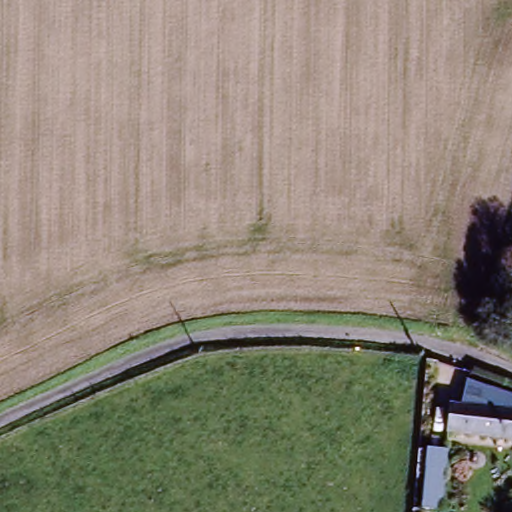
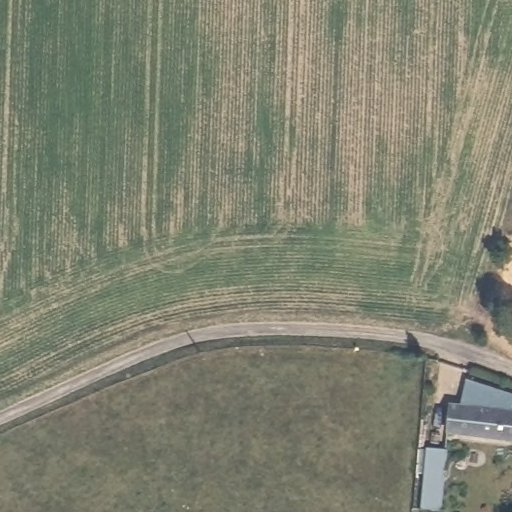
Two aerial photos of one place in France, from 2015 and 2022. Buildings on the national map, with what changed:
unchanged [(449,434),(453,407),(466,408),(468,387),(512,392),(512,440),(449,434)]

